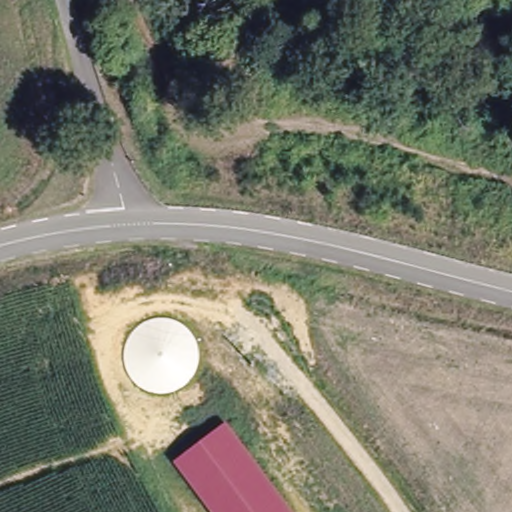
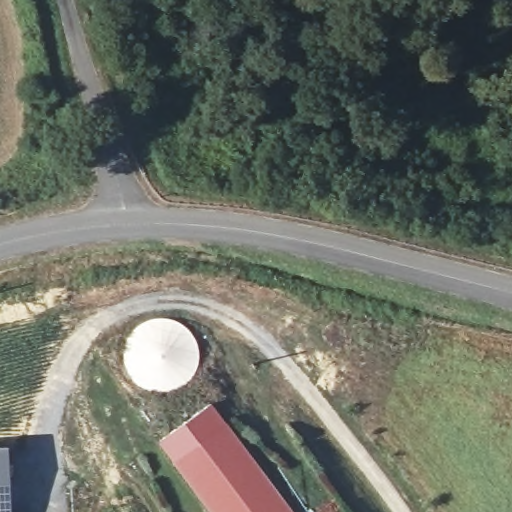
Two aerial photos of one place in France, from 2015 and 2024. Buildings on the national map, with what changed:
unchanged [(226,422),(295,512),(210,512),(174,462),(226,422)]
new [(7,445),(10,482),(11,512),(0,512),(0,445),(7,445)]

